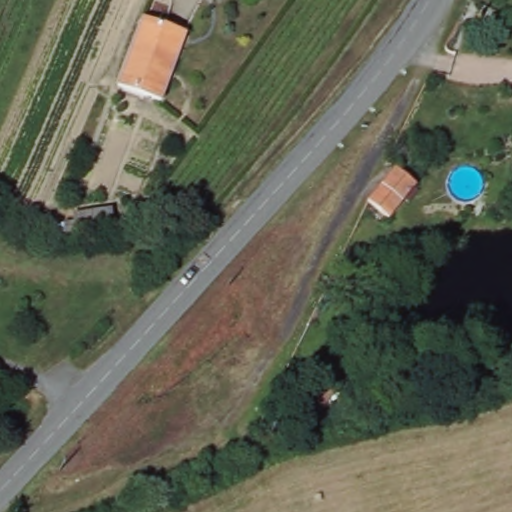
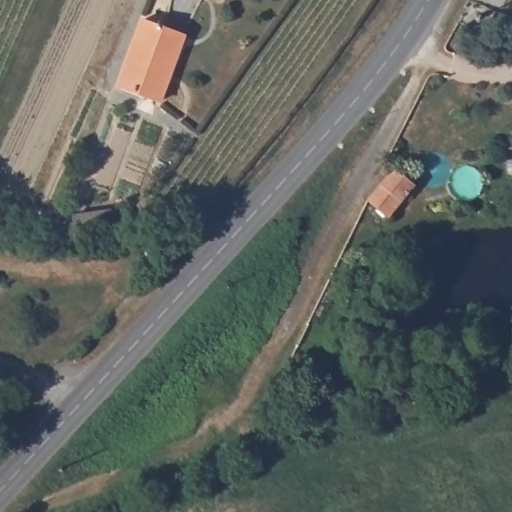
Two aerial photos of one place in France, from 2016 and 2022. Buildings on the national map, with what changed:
unchanged [(189,36),(165,102),(123,86),(146,21),(189,36)]
unchanged [(394,219),(374,200),(401,166),(423,185),(403,209),(394,219)]
unchanged [(110,210),(114,227),(64,235),(63,224),(73,223),(71,216),(110,210)]

